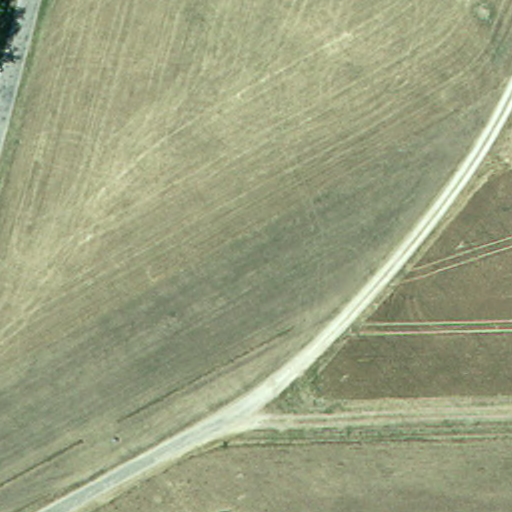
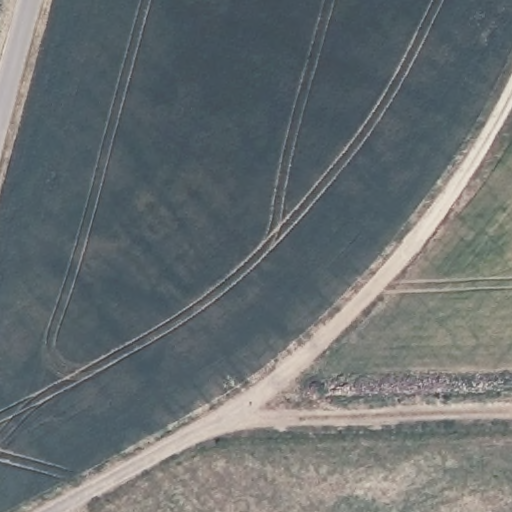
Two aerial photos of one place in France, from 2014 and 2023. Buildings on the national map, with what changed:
[]

